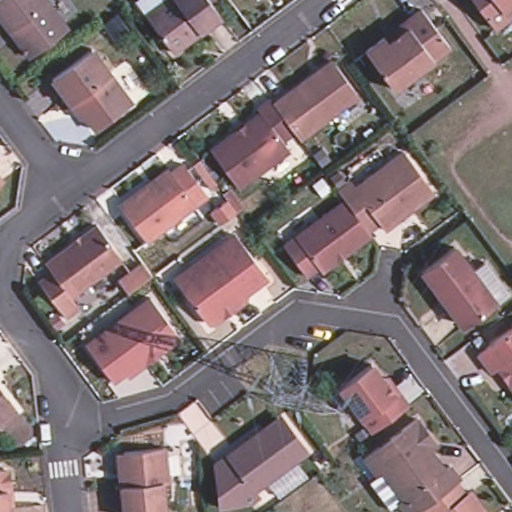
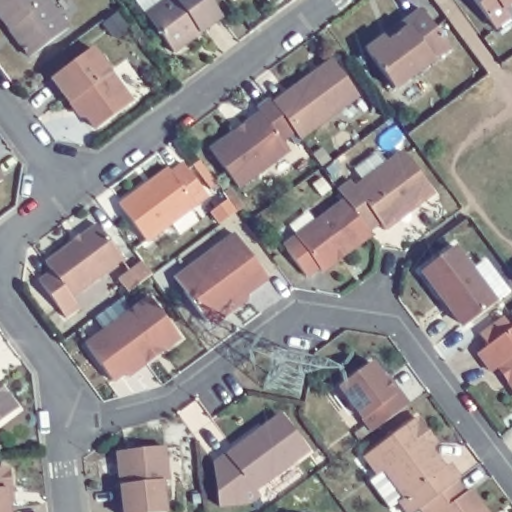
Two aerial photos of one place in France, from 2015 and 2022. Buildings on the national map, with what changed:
unchanged [(30,60),(20,45),(21,36),(15,29),(10,32),(0,17),(0,0),(46,0),(68,31),(30,60)]
unchanged [(220,21),(198,38),(195,35),(187,41),(189,44),(172,57),(144,20),(170,0),(204,0),(220,21)]
unchanged [(506,9),(511,17),(497,28),(477,0),(512,0),(512,4),(506,9)]
unchanged [(454,44),(399,86),(371,47),(390,34),(393,38),(413,24),(410,19),(426,6),(454,44)]
unchanged [(132,111),(97,137),(75,109),(71,111),(53,86),(93,56),(132,111)]
unchanged [(274,102),(332,60),(359,96),(301,138),(298,134),(274,102)]
unchanged [(298,134),(287,144),(288,148),(240,185),(213,150),(237,132),(240,132),(247,127),(247,123),(261,112),(258,108),(272,99),(274,102),(298,134)]
unchanged [(434,201),(415,215),(412,213),(397,224),(400,226),(386,236),(356,196),(403,160),(434,201)]
unchanged [(150,241),(122,205),(146,187),(169,169),(173,173),(185,164),(209,196),(150,241)]
unchanged [(228,218),(220,206),(235,194),(245,206),(228,218)]
unchanged [(372,238),(325,275),(322,271),(310,280),(287,251),(347,204),(372,238)]
unchanged [(120,255),(70,293),(73,298),(60,308),(38,278),(52,267),(45,258),(95,221),(120,255)]
unchanged [(189,273),(232,239),(265,281),(245,297),(243,304),(212,328),(205,328),(182,297),(173,285),(189,273)]
unchanged [(438,306),(436,307),(415,279),(447,254),(465,278),(477,269),(500,301),(488,310),(458,333),(438,306)]
unchanged [(178,343),(160,357),(157,355),(143,366),(145,369),(127,382),(124,379),(112,388),(85,352),(148,303),(178,343)]
unchanged [(509,390),(511,386),(500,372),(491,379),(477,360),(512,333),(512,394),(509,390)]
unchanged [(388,381),(398,396),(407,409),(372,436),(341,392),(372,368),(385,384),(388,381)]
unchanged [(7,398),(17,412),(0,424),(0,396),(2,398),(7,398)]
unchanged [(384,476),(370,457),(422,419),(442,446),(435,451),(448,470),(455,466),(465,480),(463,481),(427,508),(422,512),(412,512),(405,503),(397,511),(374,482),(384,476)]
unchanged [(304,451),(252,491),(256,496),(247,503),(218,506),(213,464),(251,435),(255,439),(282,420),(304,451)]
unchanged [(163,512),(122,512),(120,489),(117,457),(122,456),(163,452),(167,486),(160,487),(163,512)]
unchanged [(0,512),(0,472),(4,472),(10,476),(11,488),(13,508),(9,509),(9,512),(0,512)]
unchanged [(472,492),(477,488),(494,512),(430,512),(427,508),(463,481),(472,492)]

